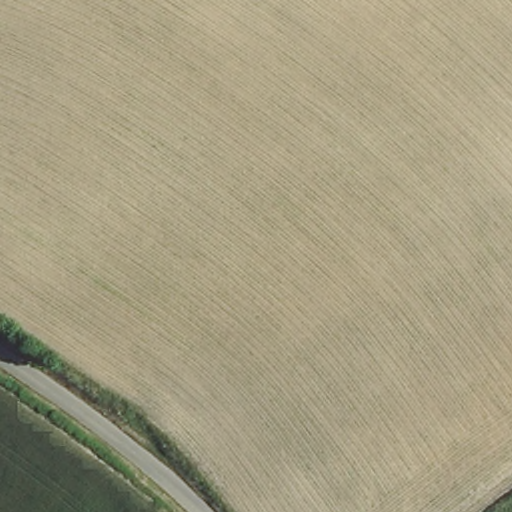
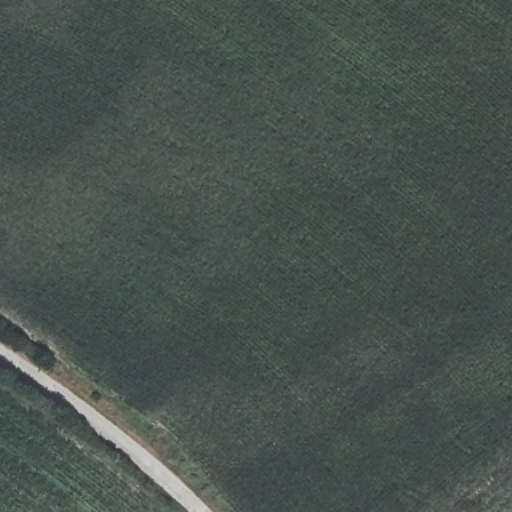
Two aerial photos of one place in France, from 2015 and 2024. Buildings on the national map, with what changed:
[]

